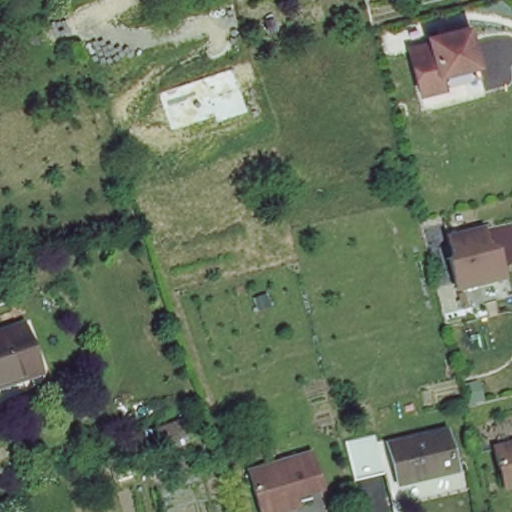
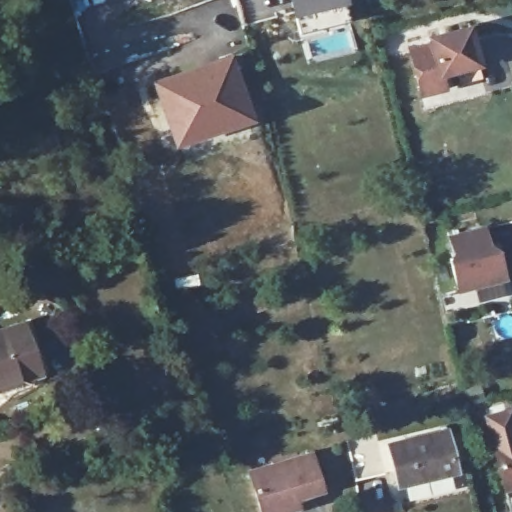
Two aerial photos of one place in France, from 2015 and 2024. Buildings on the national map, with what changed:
new [(293,15),(291,15),(288,0),(346,0),(346,2),(342,3),(346,18),(299,31),(293,15)]
unchanged [(479,75),(418,90),(407,44),(430,39),(427,32),(466,22),(479,75)]
new [(174,146),(152,81),(231,55),(251,119),(174,146)]
unchanged [(480,223),(485,244),(493,246),(500,274),(453,285),(446,253),(450,252),(445,231),(480,223)]
unchanged [(42,376),(0,393),(0,332),(27,324),(42,376)]
unchanged [(442,436),(452,476),(400,488),(387,447),(442,436)]
unchanged [(512,480),(503,482),(493,441),(512,437),(512,480)]
unchanged [(322,487),(260,507),(249,470),(310,450),(322,487)]

